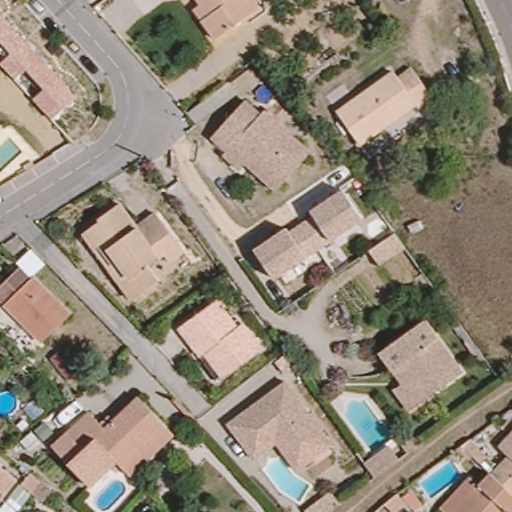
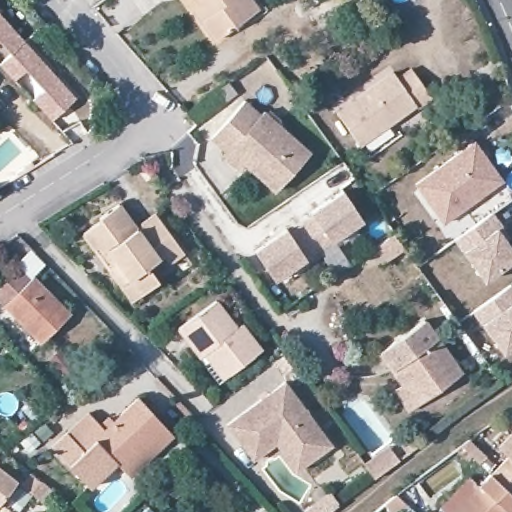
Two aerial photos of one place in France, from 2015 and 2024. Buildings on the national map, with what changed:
unchanged [(193,11),(185,0),(242,0),(252,13),(239,23),(211,46),(196,27),(187,16),(193,11)]
unchanged [(78,97),(54,122),(33,99),(44,90),(26,71),(15,81),(0,64),(0,62),(10,54),(0,44),(0,10),(78,97)]
unchanged [(356,160),(348,148),(327,121),(381,79),(387,85),(399,76),(422,107),(410,116),(408,114),(404,108),(378,129),(377,130),(385,138),(356,160)]
unchanged [(190,122),(180,109),(190,103),(229,81),(238,96),(194,125),(190,122)]
unchanged [(227,141),(216,125),(253,100),(266,117),(275,114),(312,167),(270,196),(244,160),(236,164),(222,144),(227,141)]
new [(470,139),(497,177),(439,218),(412,180),(470,139)]
unchanged [(365,220),(275,282),(253,250),(286,227),(289,232),(313,216),(310,212),(345,187),(365,220)]
new [(507,234),(502,237),(512,250),(512,255),(482,277),(452,236),(489,208),(507,234)]
unchanged [(112,293),(98,276),(84,257),(72,242),(109,215),(126,237),(146,224),(176,260),(164,272),(156,262),(139,275),(150,291),(136,301),(124,309),(112,293)]
unchanged [(405,249),(380,266),(371,254),(395,237),(405,249)]
unchanged [(13,271),(24,282),(28,278),(69,321),(37,351),(0,312),(0,283),(13,271)]
new [(512,285),(512,345),(504,350),(474,309),(510,282),(512,285)]
unchanged [(236,311),(235,312),(266,347),(231,377),(209,352),(204,356),(183,331),(187,325),(223,295),(236,311)]
unchanged [(377,351),(424,317),(462,372),(427,398),(409,412),(395,390),(402,384),(377,351)]
unchanged [(65,347),(87,371),(65,390),(45,365),(65,347)]
unchanged [(292,367),(284,372),(275,360),(283,354),(292,367)]
unchanged [(278,445),(255,461),(251,456),(229,426),(263,400),(268,396),(286,383),(333,445),(310,463),(298,472),(278,445)]
unchanged [(153,417),(135,434),(142,442),(123,462),(83,420),(88,415),(104,432),(138,401),(153,417)]
unchanged [(123,462),(142,442),(135,434),(153,417),(172,437),(136,476),(123,462)]
unchanged [(83,420),(123,462),(98,487),(56,447),(83,420)]
unchanged [(501,447),(512,435),(512,493),(510,491),(493,477),(510,456),(501,447)]
unchanged [(480,454),(475,460),(458,445),(464,440),(480,454)]
unchanged [(372,466),(395,448),(407,462),(383,481),(372,466)]
unchanged [(510,491),(512,493),(512,512),(444,512),(472,480),(481,487),(492,476),(493,477),(510,491)]
unchanged [(11,485),(0,498),(0,477),(11,485)]
unchanged [(348,507),(342,512),(317,512),(339,496),(348,507)]
new [(155,512),(142,512),(147,506),(155,512)]

